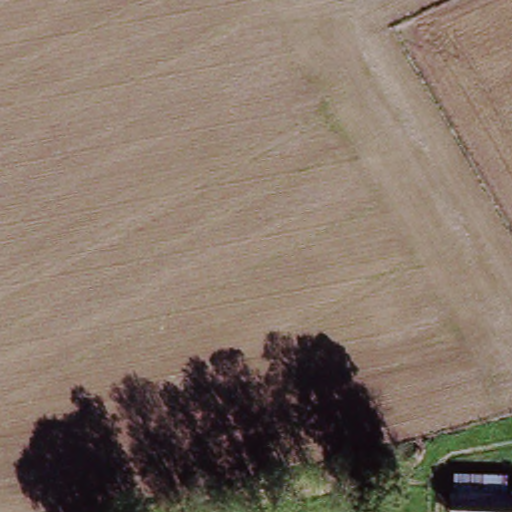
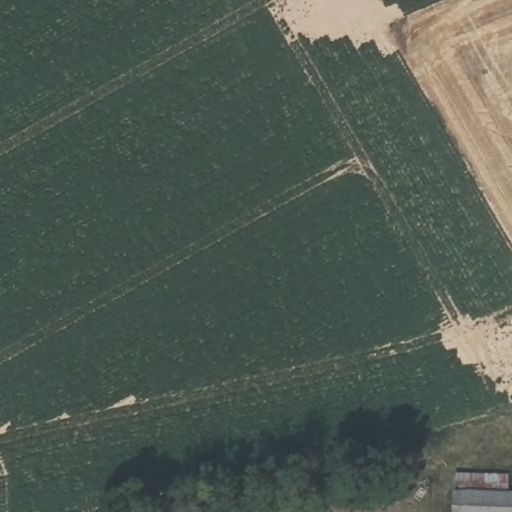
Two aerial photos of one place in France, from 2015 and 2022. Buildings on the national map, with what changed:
unchanged [(512,496),(512,512),(462,512),(464,492),(512,496)]

